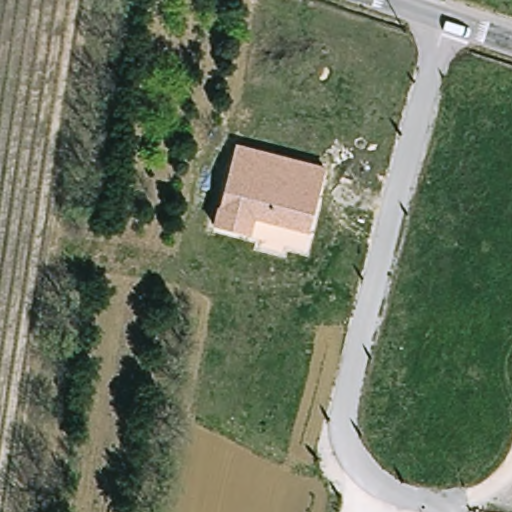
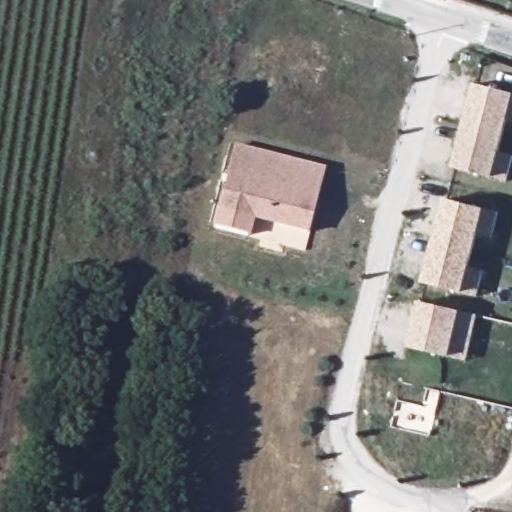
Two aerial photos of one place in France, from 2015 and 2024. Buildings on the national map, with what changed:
new [(508,119),(499,154),(511,156),(506,180),(492,178),(452,169),(473,84),(512,93),(512,121),(508,119)]
unchanged [(329,170),(315,233),(258,220),(254,238),(219,229),(238,149),(329,170)]
new [(476,291),(462,288),(424,279),(444,194),(482,204),(499,207),(490,233),(475,229),(467,263),(482,266),(476,291)]
new [(479,316),(467,361),(451,356),(409,346),(419,301),(462,312),(479,316)]
new [(424,407),(428,389),(459,397),(447,441),(392,428),(398,401),(424,407)]

